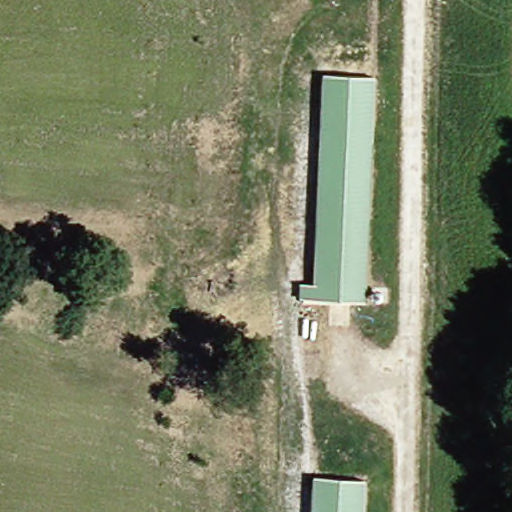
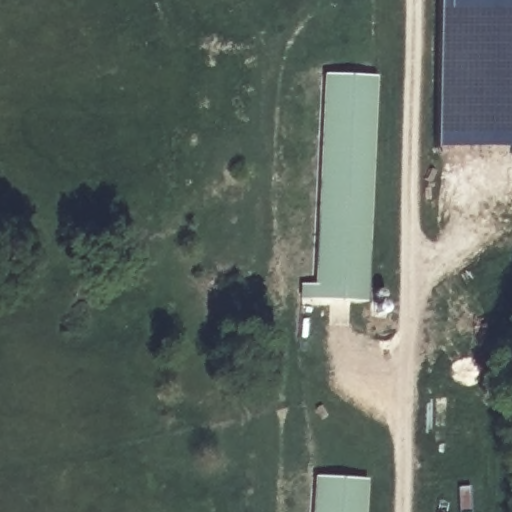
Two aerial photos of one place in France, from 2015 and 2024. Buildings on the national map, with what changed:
new [(435,149),(436,0),(512,0),(512,148),(435,149)]
unchanged [(298,298),(298,286),(314,284),(326,75),(374,77),(361,301),(298,298)]
unchanged [(363,476),(361,512),(313,512),(316,474),(363,476)]

